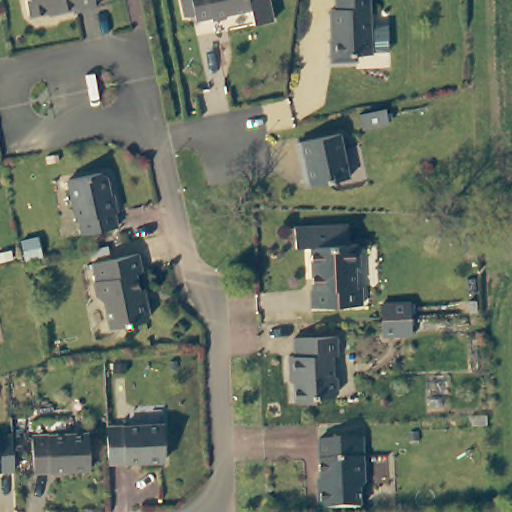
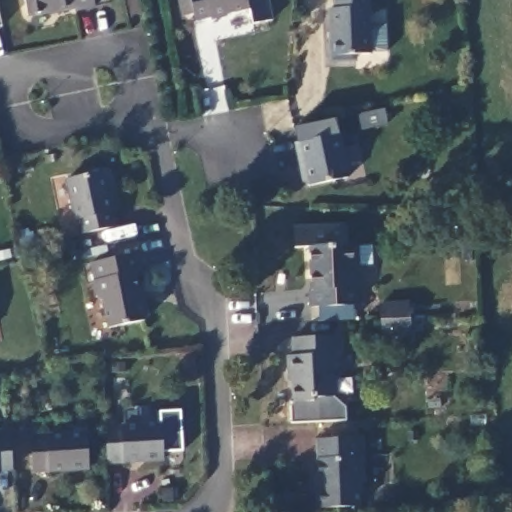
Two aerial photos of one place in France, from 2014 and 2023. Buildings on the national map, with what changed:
unchanged [(72,10),(71,7),(53,11),(53,9),(24,14),(21,0),(89,0),(90,6),(72,10)]
unchanged [(253,27),(249,12),(223,18),(224,21),(209,24),(209,21),(196,24),(190,0),(267,0),(272,22),(253,27)]
unchanged [(355,59),(329,60),(328,37),(330,37),(329,7),(334,7),(334,0),(367,0),(369,53),(355,54),(355,59)]
unchanged [(384,109),(387,124),(361,130),(358,114),(384,109)]
unchanged [(313,190),(308,187),(305,171),(308,166),(307,162),(304,162),(301,147),(343,137),(352,182),(313,190)]
unchanged [(99,171),(106,176),(109,192),(111,192),(115,210),(112,211),(115,226),(81,232),(78,217),(76,218),(67,179),(99,171)]
unchanged [(309,292),(311,292),(309,251),(294,252),(293,230),(346,228),(347,249),(356,248),(357,270),(353,270),(354,291),(359,291),(360,308),(310,311),(309,292)]
unchanged [(18,245),(39,241),(42,257),(22,262),(18,245)]
unchanged [(137,251),(141,271),(135,272),(140,297),(146,296),(148,313),(143,319),(108,327),(104,300),(95,295),(93,280),(95,279),(92,261),(137,251)]
unchanged [(382,323),(381,308),(408,306),(409,321),(410,336),(402,337),(383,337),(382,323)]
unchanged [(335,335),(336,355),(330,355),(331,372),(335,377),(336,391),(330,397),(316,397),(312,401),(293,401),(292,373),(288,373),(287,355),(293,355),(292,337),(335,335)]
unchanged [(162,423),(164,460),(109,462),(107,427),(162,423)]
unchanged [(85,468),(29,471),(27,435),(83,432),(85,468)]
unchanged [(11,433),(13,470),(0,470),(0,434),(11,433)]
unchanged [(361,435),(364,481),(359,486),(359,504),(317,506),(316,486),(318,486),(316,437),(361,435)]

